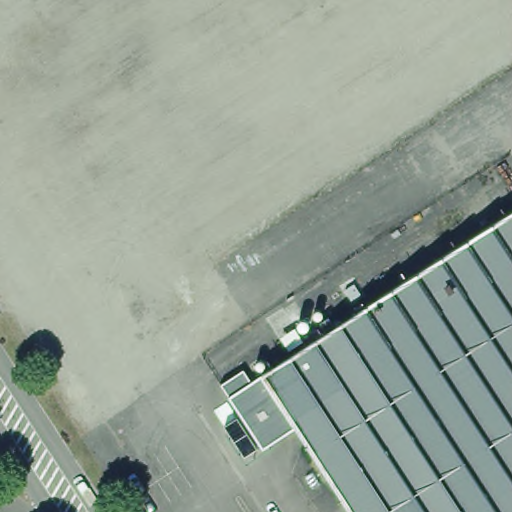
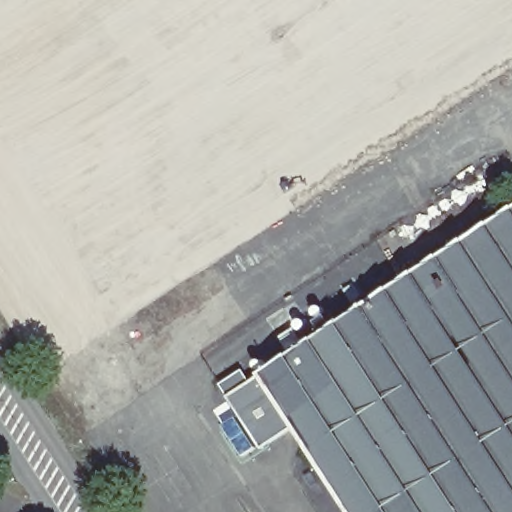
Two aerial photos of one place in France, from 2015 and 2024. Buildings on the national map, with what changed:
unchanged [(374,512),(313,412),(281,359),(512,210),(512,512),(374,512)]
unchanged [(281,432),(248,381),(281,359),(313,412),(281,432)]

